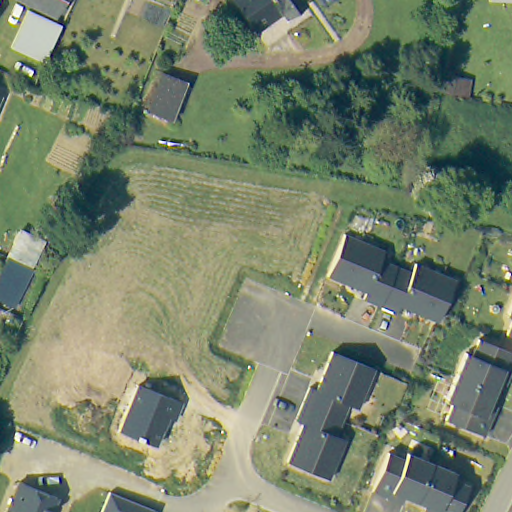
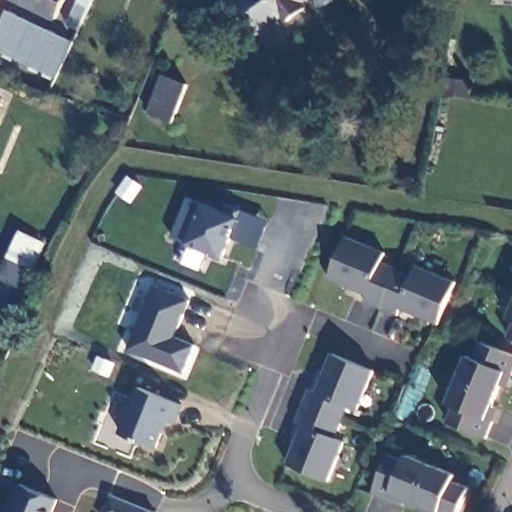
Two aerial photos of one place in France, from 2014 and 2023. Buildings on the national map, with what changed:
unchanged [(65,23),(20,0),(75,0),(65,23)]
unchanged [(308,8),(286,21),(282,15),(255,37),(229,0),(303,0),(308,8)]
unchanged [(164,72),(190,83),(175,120),(149,109),(164,72)]
unchanged [(1,99),(0,101),(0,99),(1,99)]
new [(258,249),(232,239),(223,259),(186,244),(172,237),(189,196),(205,201),(225,210),(229,201),(270,220),(258,249)]
unchanged [(0,300),(0,284),(10,261),(24,232),(47,242),(34,271),(17,308),(0,300)]
unchanged [(392,257),(388,266),(420,279),(423,270),(463,287),(445,329),(406,312),(403,319),(370,305),(373,298),(335,282),(339,272),(353,240),(392,257)]
new [(175,336),(197,345),(184,374),(126,350),(154,284),(191,299),(175,336)]
unchanged [(491,425),(497,427),(490,445),(451,428),(458,412),(452,409),(472,361),(479,364),(486,347),(512,358),(512,379),(510,378),(491,425)]
unchanged [(291,468),(307,429),(300,426),(315,393),(322,396),(338,357),(380,375),(363,415),(354,411),(340,442),(350,446),(333,486),(291,468)]
unchanged [(138,385),(173,399),(184,404),(176,422),(169,419),(157,449),(120,432),(138,385)]
unchanged [(425,512),(396,500),(393,506),(376,499),(393,460),(409,467),(411,460),(460,481),(457,487),(473,494),(465,512),(425,512)]
unchanged [(60,500),(55,512),(11,512),(23,484),(60,500)]
unchanged [(151,512),(106,512),(113,496),(151,512)]

